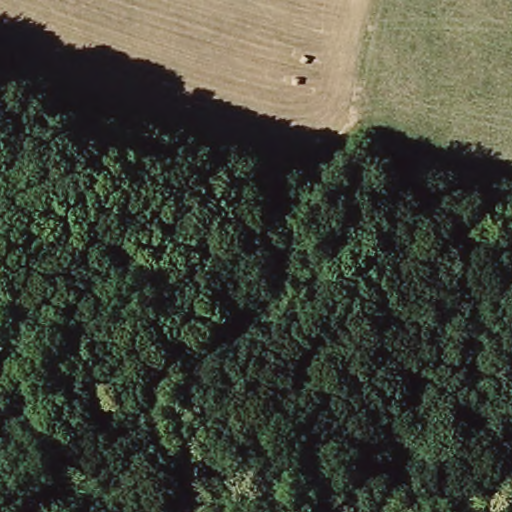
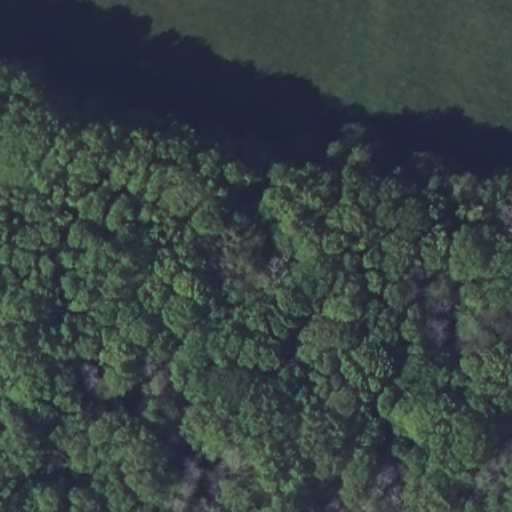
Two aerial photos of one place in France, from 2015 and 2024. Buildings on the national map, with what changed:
[]

